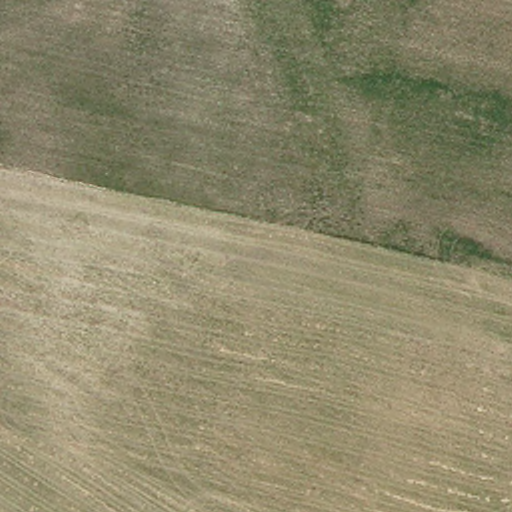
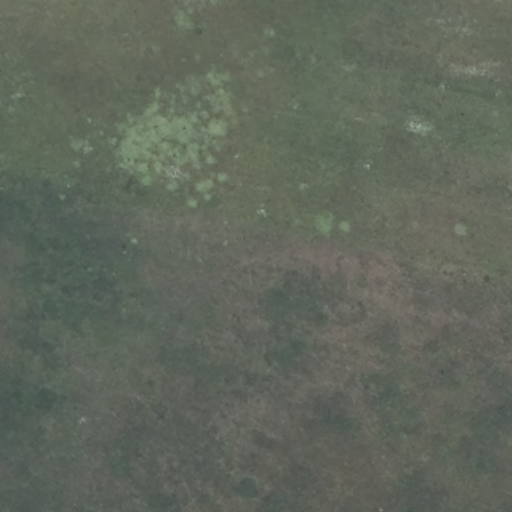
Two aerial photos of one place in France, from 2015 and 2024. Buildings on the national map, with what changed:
[]

